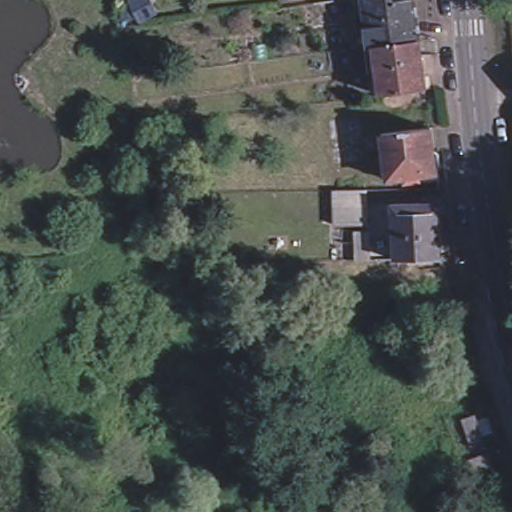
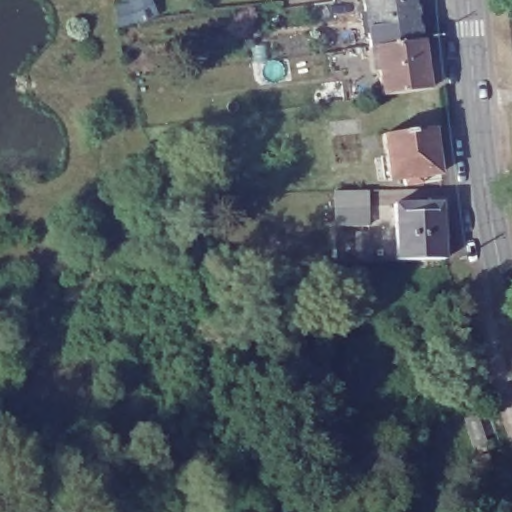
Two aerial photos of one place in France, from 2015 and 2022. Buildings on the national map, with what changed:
unchanged [(316,25),(315,16),(314,3),(338,0),(340,13),(340,21),(316,25)]
unchanged [(361,0),(395,0),(395,2),(415,0),(420,38),(373,44),(367,45),(361,0)]
unchanged [(373,44),(420,38),(425,87),(380,93),(373,44)]
unchanged [(430,128),(430,129),(433,150),(438,151),(440,154),(441,164),(440,166),(436,170),(436,173),(386,179),(381,135),(381,134),(430,128)]
unchanged [(334,190),(366,189),(367,204),(368,225),(335,225),(335,205),(334,190)]
unchanged [(422,204),(423,213),(440,213),(442,258),(395,259),(392,206),(422,204)]

